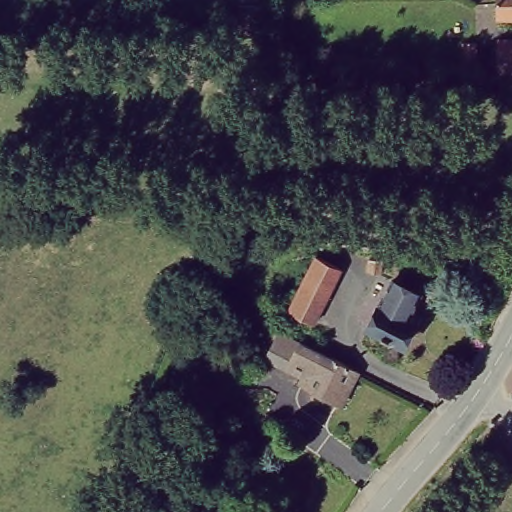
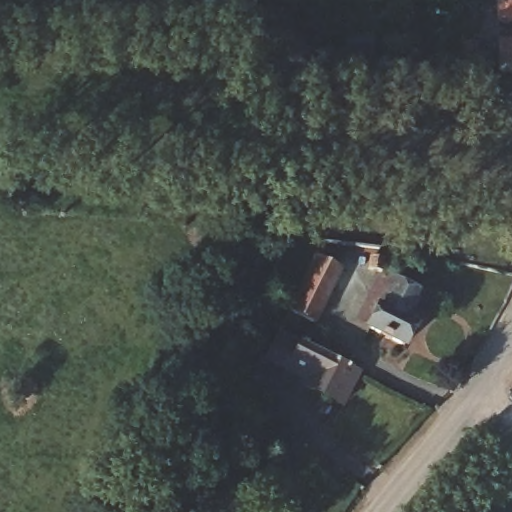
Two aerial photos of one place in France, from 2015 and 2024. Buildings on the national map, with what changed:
unchanged [(494,18),(497,0),(512,0),(512,18),(494,18)]
unchanged [(512,43),(512,73),(501,73),(501,42),(512,43)]
unchanged [(342,268),(315,318),(287,303),(315,254),(342,268)]
unchanged [(404,269),(399,281),(385,277),(390,265),(404,269)]
unchanged [(421,305),(406,331),(414,336),(404,353),(369,332),(393,288),(421,305)]
unchanged [(280,350),(287,335),(344,363),(328,396),(290,376),(297,359),(280,350)]

